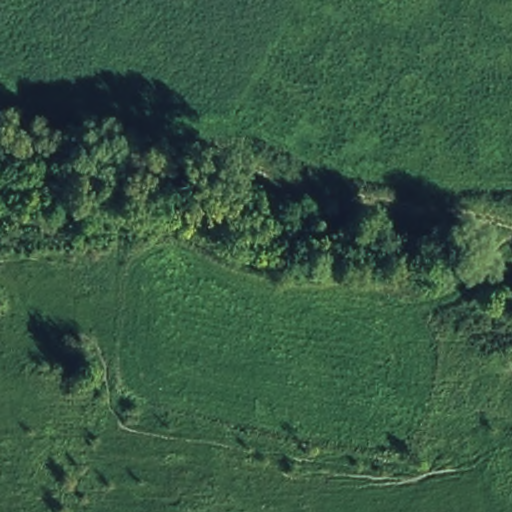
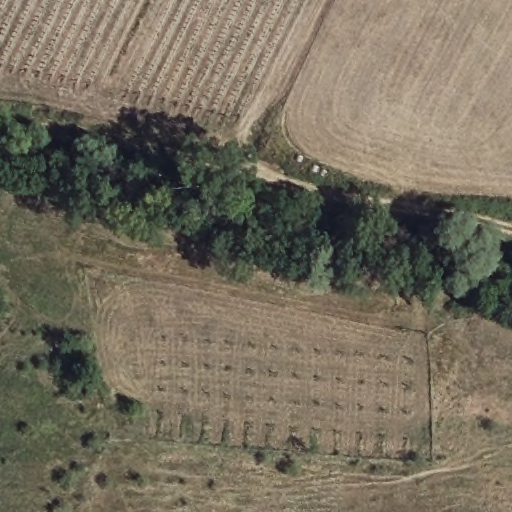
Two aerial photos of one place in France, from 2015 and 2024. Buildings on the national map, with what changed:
[]

